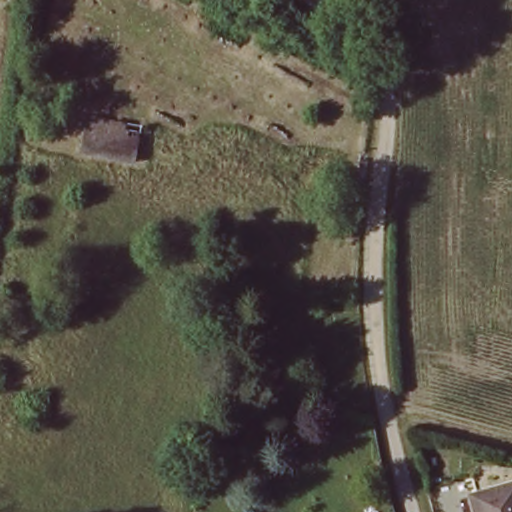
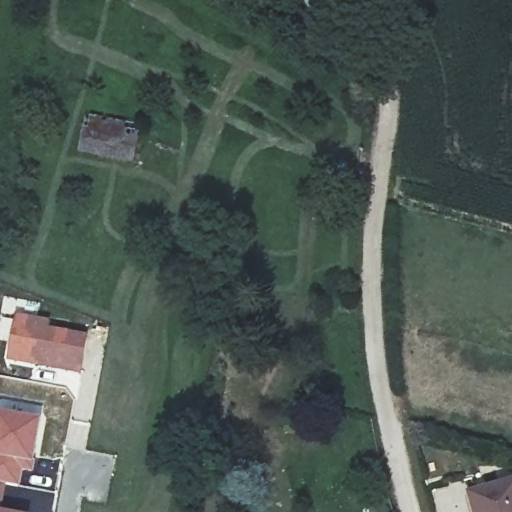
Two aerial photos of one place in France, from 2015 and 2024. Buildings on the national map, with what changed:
unchanged [(88,114),(141,125),(133,164),(79,154),(88,114)]
new [(15,313),(51,319),(50,327),(89,334),(81,375),(5,360),(15,313)]
new [(34,473),(24,472),(21,487),(7,484),(0,483),(0,410),(44,419),(34,473)]
new [(3,509),(16,512),(0,512),(0,483),(7,484),(3,509)]
unchanged [(472,499),(512,487),(512,512),(475,512),(472,499)]

